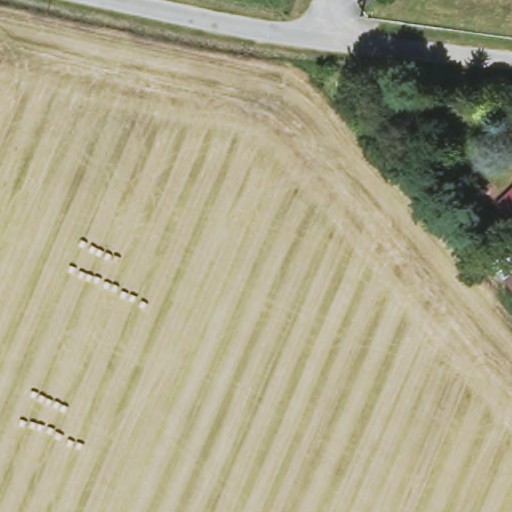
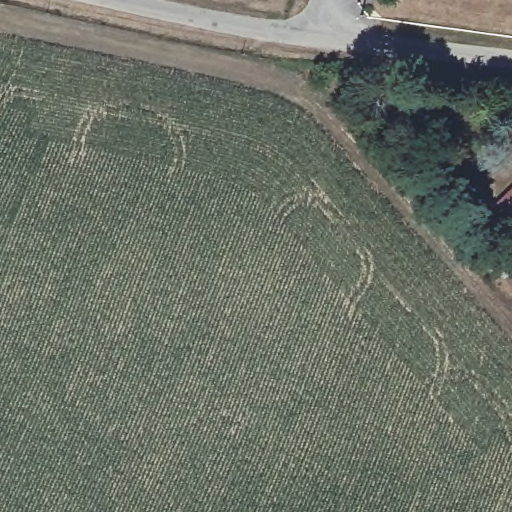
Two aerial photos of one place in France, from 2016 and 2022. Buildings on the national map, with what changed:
unchanged [(512,215),(509,213),(512,209),(512,215)]

